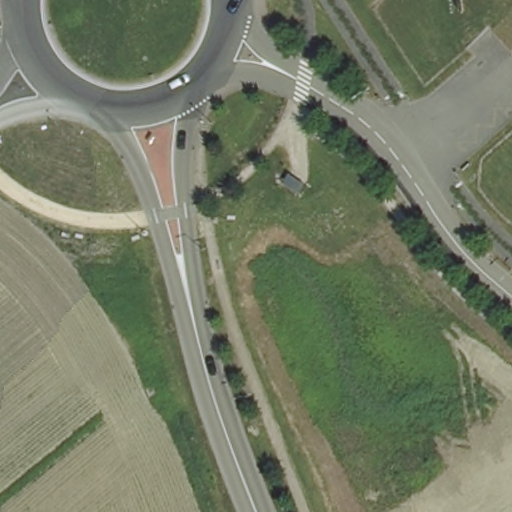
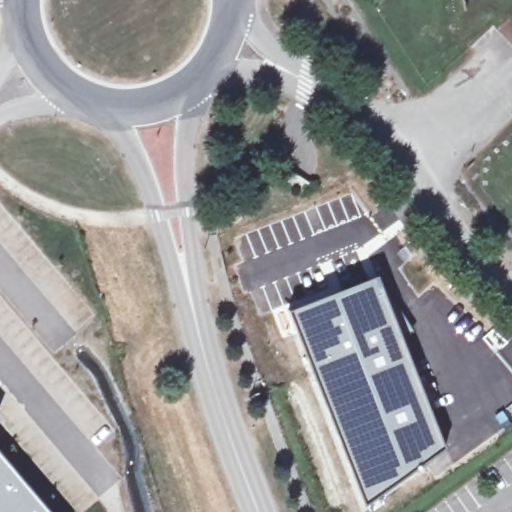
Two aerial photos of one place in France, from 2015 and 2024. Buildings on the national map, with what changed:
unchanged [(293,173),(309,183),(302,192),(287,182),(293,173)]
new [(377,273),(446,445),(386,489),(365,502),(289,307),(377,273)]
new [(0,512),(0,450),(51,512),(0,512)]

